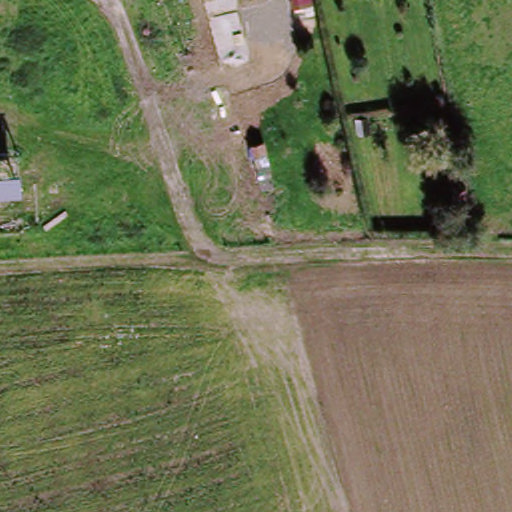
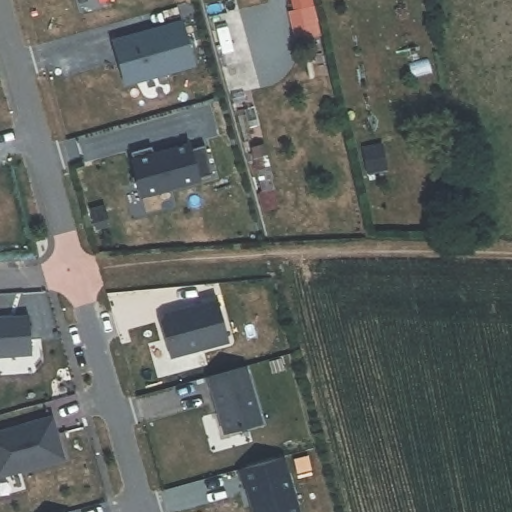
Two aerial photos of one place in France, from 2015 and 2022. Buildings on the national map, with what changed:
new [(297,36),(291,7),(293,7),(292,0),(312,0),(313,3),(318,31),(297,36)]
new [(184,61),(120,79),(109,40),(173,22),(184,61)]
new [(127,159),(125,151),(146,145),(148,154),(184,144),(185,149),(199,145),(207,175),(193,179),(193,181),(135,196),(131,182),(127,184),(125,176),(129,175),(125,160),(127,159)]
new [(165,312),(218,299),(229,342),(171,358),(161,321),(165,312)]
new [(31,351),(0,353),(0,315),(30,313),(31,351)]
new [(247,361),(262,417),(225,427),(210,372),(247,361)]
new [(62,456),(0,474),(0,429),(51,415),(62,456)]
new [(67,512),(65,512),(67,511),(67,512)]

